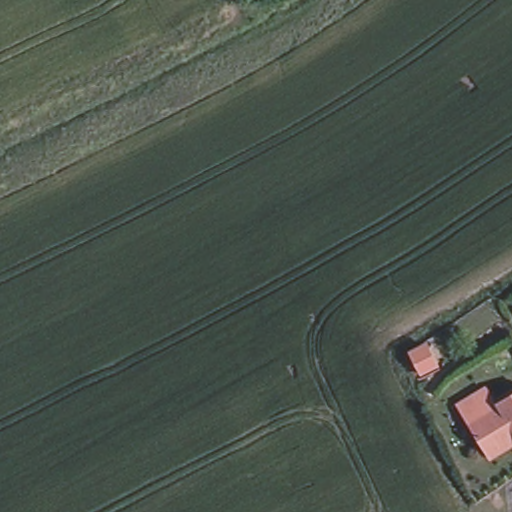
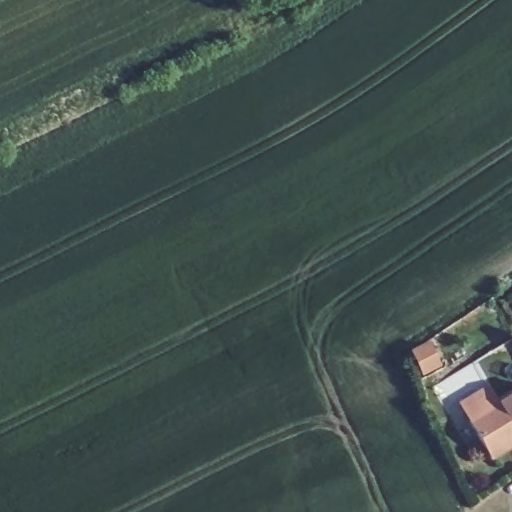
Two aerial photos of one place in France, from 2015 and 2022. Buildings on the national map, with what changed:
unchanged [(429,347),(439,367),(421,376),(411,356),(429,347)]
unchanged [(488,435),(478,419),(469,404),(499,386),(508,401),(512,399),(512,450),(500,456),(488,435)]

